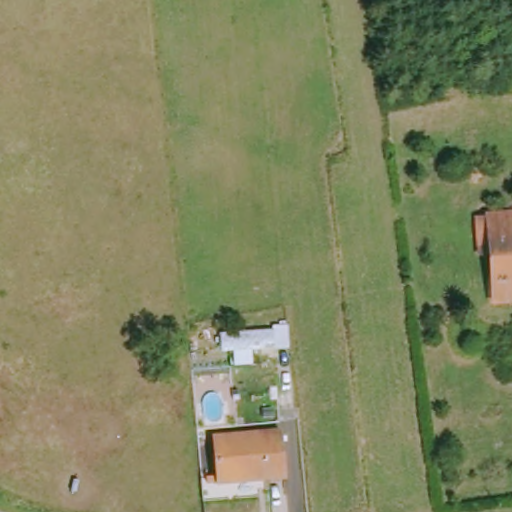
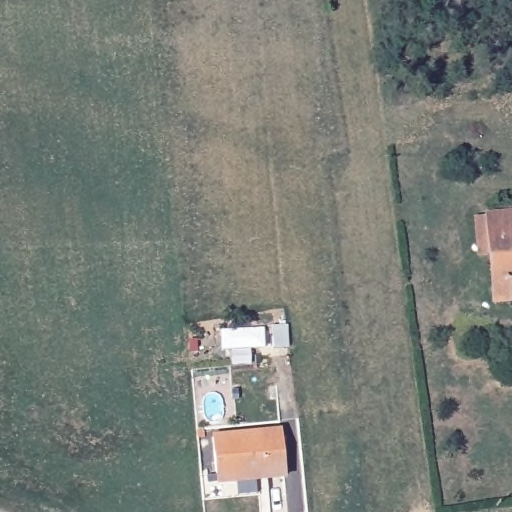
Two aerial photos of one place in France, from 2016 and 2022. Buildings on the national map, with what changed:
unchanged [(495,303),(485,216),(512,214),(512,301),(495,303)]
unchanged [(287,327),(287,348),(250,351),(250,364),(233,365),(232,353),(221,353),(220,335),(272,332),(272,326),(287,327)]
unchanged [(212,487),(209,441),(277,436),(280,484),(212,487)]

